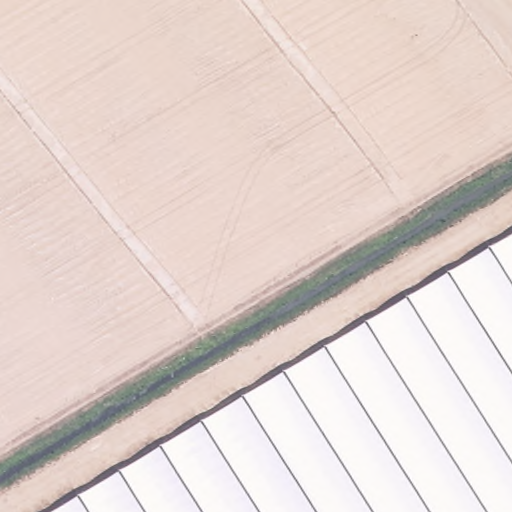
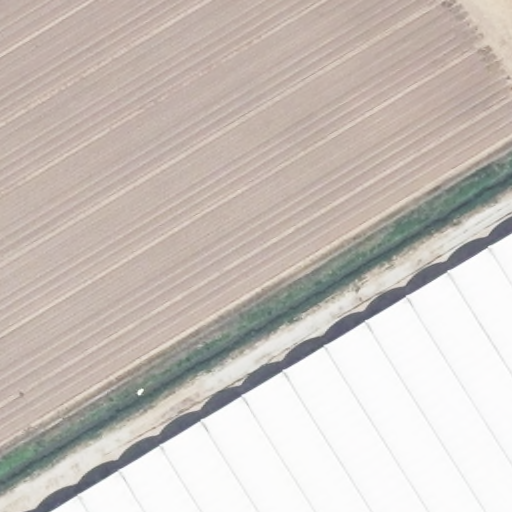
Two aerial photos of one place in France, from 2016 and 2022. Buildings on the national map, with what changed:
unchanged [(512,231),(512,512),(50,512),(512,231)]

